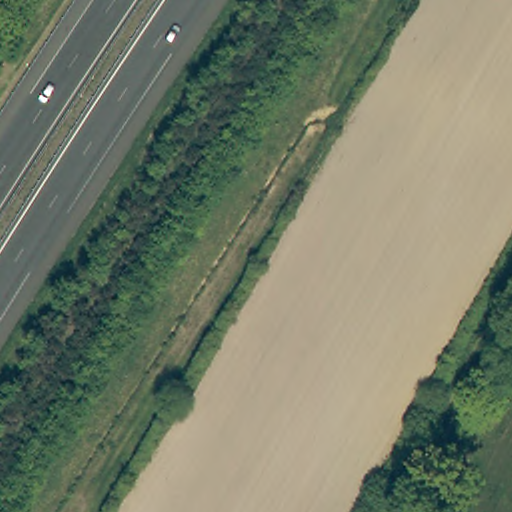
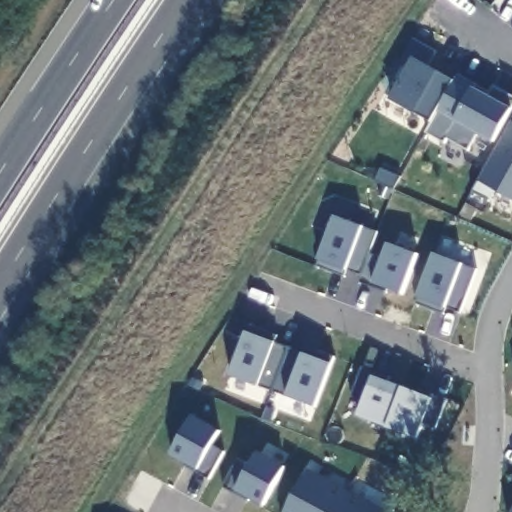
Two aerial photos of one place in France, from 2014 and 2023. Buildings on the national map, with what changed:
new [(431,122),(415,114),(389,100),(407,68),(399,64),(413,38),(436,51),(429,66),(438,72),(452,82),(431,122)]
new [(431,122),(452,82),(457,74),(489,91),(492,85),(512,96),(512,107),(493,142),(477,133),(467,151),(446,139),(444,143),(424,132),(431,122)]
new [(494,190),(489,201),(471,192),(512,119),(512,199),(494,190)]
new [(346,270),(343,277),(315,266),(334,216),(376,232),(360,276),(346,270)]
new [(368,253),(381,258),(387,243),(416,254),(401,295),(387,289),(385,293),(357,283),(360,276),(368,253)]
new [(433,253),(476,269),(459,313),(445,308),(442,315),(414,304),(433,253)]
new [(271,392),(229,375),(248,325),(276,335),(274,342),(288,348),(271,392)]
new [(302,353),(304,346),(333,357),(314,408),(271,392),(288,348),(302,353)]
new [(386,428),(357,417),(362,401),(349,397),(360,367),(388,377),(386,382),(401,388),(386,428)]
new [(416,393),(418,388),(445,399),(434,428),(421,424),(416,439),(386,428),(401,388),(416,393)]
new [(194,472),(196,469),(170,454),(191,416),(219,431),(211,446),(223,452),(208,480),(194,472)]
new [(236,459),(249,466),(256,452),(284,467),(263,505),(249,498),(248,501),(221,487),(236,459)]
new [(347,492),(335,512),(284,512),(307,470),(347,492)]
new [(384,512),(335,512),(347,492),(384,512)]

